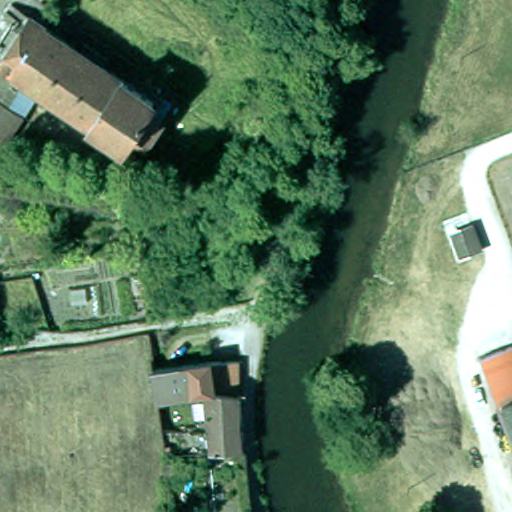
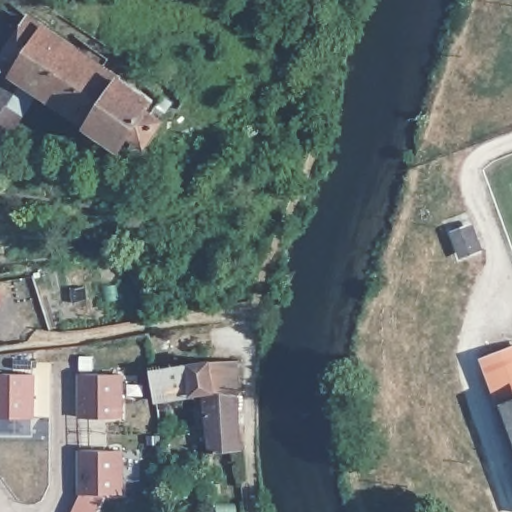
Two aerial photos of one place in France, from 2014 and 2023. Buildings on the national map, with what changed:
unchanged [(45,14),(168,99),(162,109),(175,118),(160,140),(146,130),(139,140),(54,81),(22,60),(16,56),(45,14)]
unchanged [(36,106),(5,86),(20,63),(22,60),(54,81),(52,84),(36,106)]
unchanged [(7,148),(0,142),(0,93),(5,86),(36,106),(7,148)]
unchanged [(480,250),(465,256),(457,237),(473,231),(480,250)]
unchanged [(512,346),(512,440),(482,357),(512,346)]
unchanged [(158,367),(210,361),(245,359),(244,393),(213,388),(212,392),(162,402),(158,367)]
new [(35,418),(0,418),(0,372),(36,373),(35,418)]
new [(125,417),(79,417),(79,373),(124,373),(125,417)]
unchanged [(212,392),(213,388),(244,393),(242,421),(245,447),(215,449),(214,434),(212,392)]
new [(107,493),(97,512),(86,512),(73,506),(79,492),(79,448),(123,447),(124,493),(107,493)]
new [(86,512),(70,512),(73,506),(86,512)]

